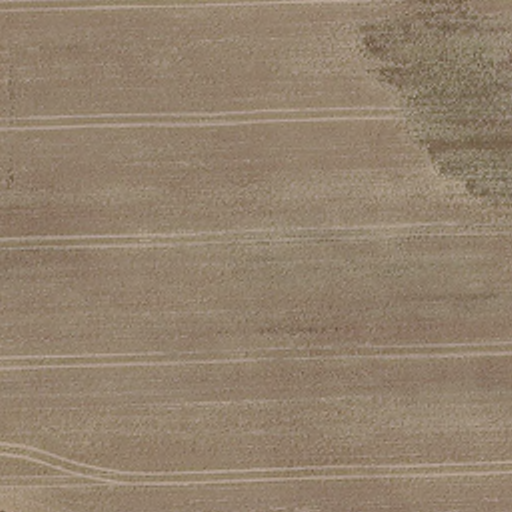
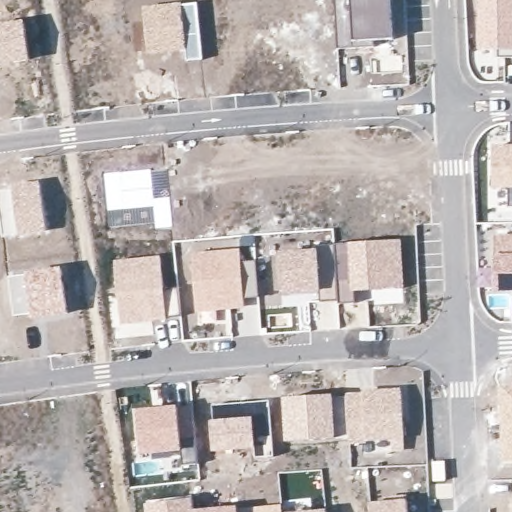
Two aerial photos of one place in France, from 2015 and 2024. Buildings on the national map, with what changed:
new [(337,50),(334,0),(393,0),(396,41),(337,50)]
new [(499,56),(475,53),(473,0),(512,0),(512,56),(499,56)]
new [(204,59),(187,61),(185,50),(146,54),(142,7),(181,3),(198,2),(204,59)]
new [(32,60),(0,65),(0,24),(25,20),(32,60)]
new [(508,190),(489,189),(488,143),(512,143),(512,190),(508,190)]
new [(168,169),(170,196),(154,197),(153,207),(106,210),(103,173),(168,169)]
new [(17,236),(11,189),(11,184),(41,179),(49,232),(17,236)]
new [(4,237),(0,207),(0,192),(11,190),(17,236),(4,237)]
new [(510,207),(509,190),(512,190),(512,207),(510,207)]
new [(153,207),(154,197),(170,196),(173,228),(154,229),(154,225),(107,228),(106,210),(153,207)]
new [(512,233),(512,292),(500,293),(500,278),(495,278),(493,234),(512,233)]
new [(403,239),(405,289),(372,291),(355,292),(354,290),(351,290),(347,242),(403,239)]
new [(319,246),(347,244),(351,290),(354,290),(355,292),(355,303),(339,305),(339,301),(321,302),(321,295),(319,248),(319,246)]
new [(241,246),(242,262),(256,260),(258,299),(246,300),(246,308),(196,314),(191,252),(241,246)]
new [(319,248),(321,295),(283,297),(281,250),(319,248)]
new [(162,256),(168,319),(120,327),(114,259),(162,256)]
new [(27,277),(26,273),(62,268),(69,315),(32,320),(31,314),(14,318),(8,278),(27,277)]
new [(512,384),(512,462),(501,463),(499,385),(512,384)]
new [(402,387),(406,450),(389,451),(388,443),(348,445),(345,393),(402,387)]
new [(335,394),(338,440),(285,443),(282,398),(335,394)]
new [(179,405),(183,450),(140,455),(135,408),(179,405)]
new [(213,419),(255,415),(255,451),(212,453),(213,419)]
new [(193,497),(195,509),(239,508),(239,512),(145,512),(145,502),(193,497)]
new [(370,502),(409,498),(410,512),(370,512),(370,502)]
new [(282,503),(283,512),(239,512),(239,508),(282,503)]
new [(327,509),(327,512),(283,512),(327,509)]

